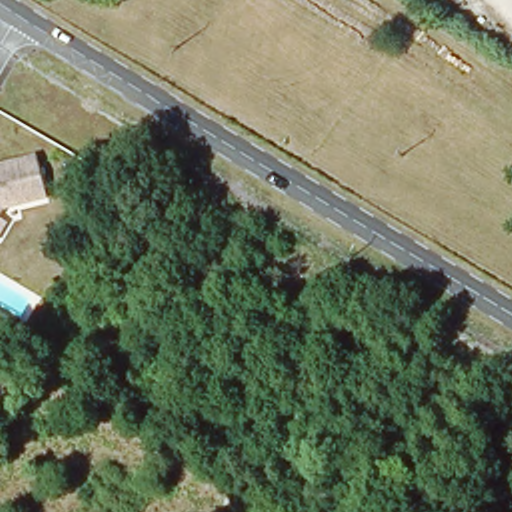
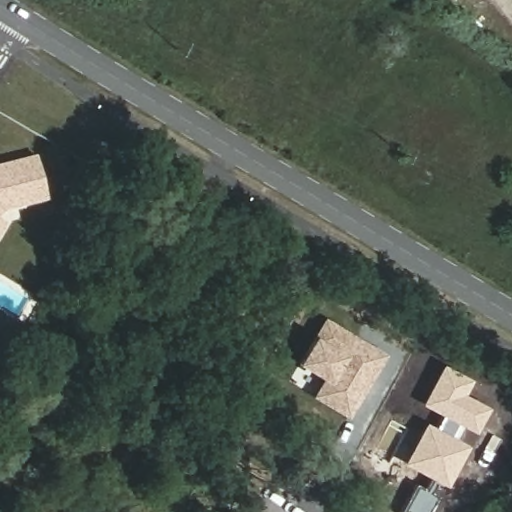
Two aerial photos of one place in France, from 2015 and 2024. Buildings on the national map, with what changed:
unchanged [(4,209),(0,216),(0,165),(37,156),(48,197),(4,209)]
unchanged [(0,238),(0,222),(6,226),(0,238)]
new [(320,380),(297,366),(315,337),(325,319),(387,355),(349,420),(312,398),(320,380)]
new [(469,447),(447,488),(436,483),(430,494),(438,498),(431,512),(401,512),(415,485),(425,489),(430,480),(403,465),(425,423),(435,429),(441,416),(421,405),(443,365),(472,380),(465,395),(489,409),(475,435),(461,427),(455,439),(469,447)]

